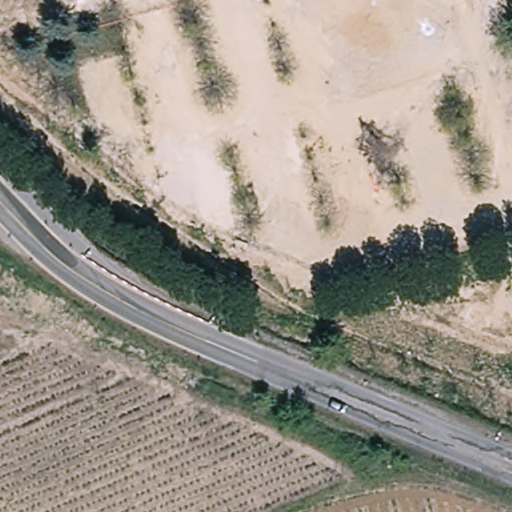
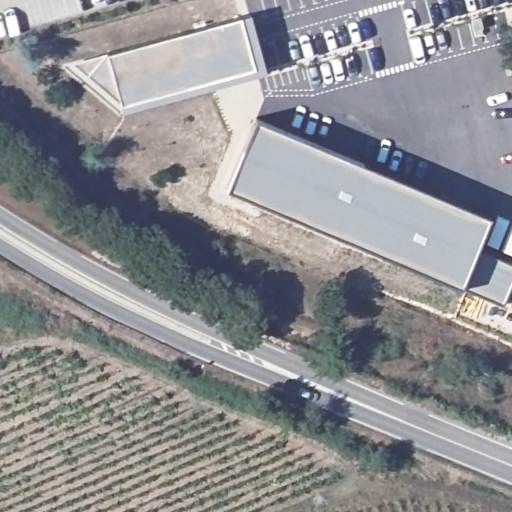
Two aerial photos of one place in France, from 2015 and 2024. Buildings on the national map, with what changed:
demolished [(0,19),(0,0),(65,0),(0,19)]
demolished [(431,27),(419,30),(427,57),(350,78),(342,51),(336,53),(330,55),(323,27),(315,0),(423,0),(431,27)]
new [(105,51),(106,52),(250,12),(267,70),(122,111),(118,98),(74,62),(105,51)]
new [(489,215),(477,244),(512,261),(512,273),(500,301),(459,282),(225,189),(255,117),(489,215)]

